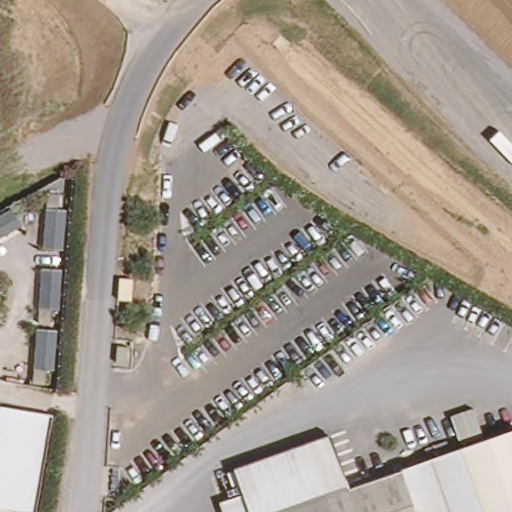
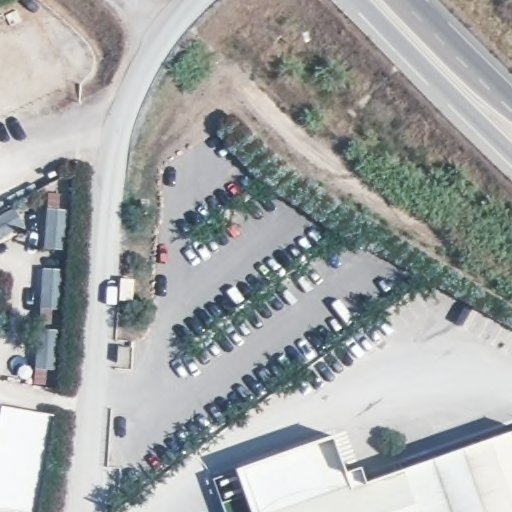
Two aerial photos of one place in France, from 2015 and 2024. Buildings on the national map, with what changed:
unchanged [(0,506),(0,402),(47,410),(30,511),(0,506)]
unchanged [(452,446),(509,427),(512,436),(512,512),(478,512),(463,473),(452,446)]
unchanged [(252,512),(238,475),(327,439),(347,489),(359,484),(374,512),(252,512)]
unchanged [(374,512),(359,484),(452,446),(463,473),(478,512),(374,512)]
unchanged [(223,512),(222,508),(232,505),(223,481),(238,475),(252,512),(223,512)]

